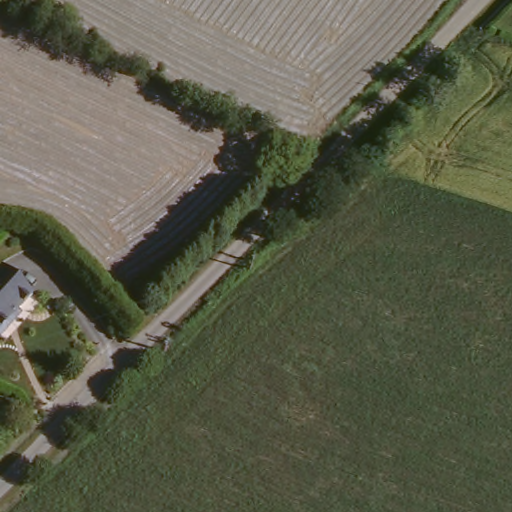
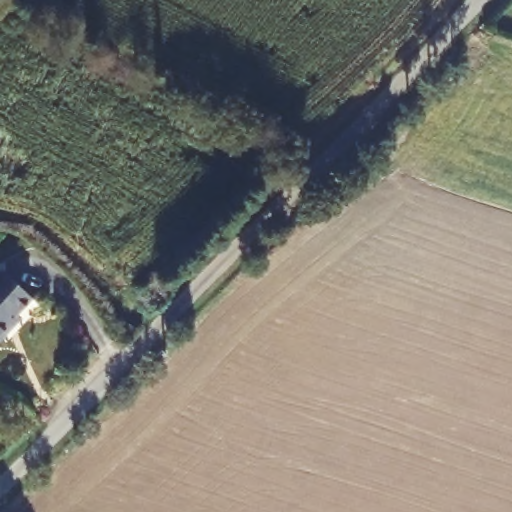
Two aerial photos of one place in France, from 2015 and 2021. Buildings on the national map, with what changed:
unchanged [(36,296),(12,317),(16,322),(1,337),(0,335),(0,275),(9,267),(36,296)]

